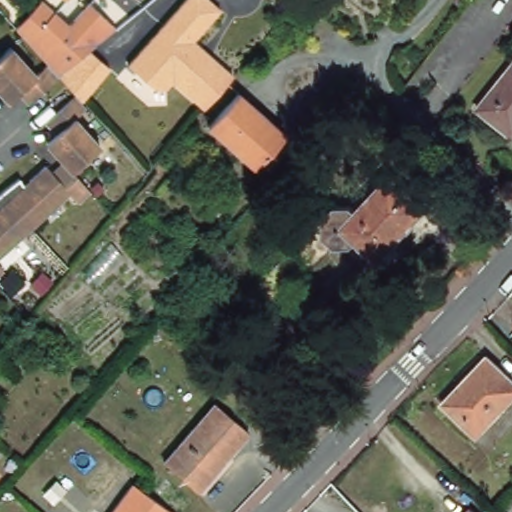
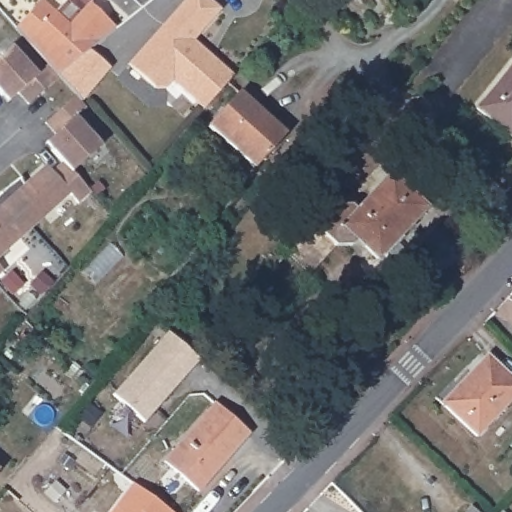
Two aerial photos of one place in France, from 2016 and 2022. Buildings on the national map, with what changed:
unchanged [(84,4),(110,28),(84,50),(52,75),(44,67),(21,42),(11,29),(36,0),(48,12),(64,26),(84,4)]
unchanged [(202,49),(199,52),(205,58),(212,57),(234,76),(205,110),(172,82),(167,89),(155,89),(129,66),(186,0),(209,0),(220,10),(193,41),(202,49)]
unchanged [(8,49),(33,76),(44,67),(52,75),(52,76),(56,80),(26,107),(16,95),(14,97),(5,105),(0,100),(0,56),(8,49)]
unchanged [(72,97),(67,92),(56,80),(52,76),(52,75),(84,50),(103,67),(75,100),(72,97)]
unchanged [(512,63),(512,137),(476,109),(512,63)]
unchanged [(234,94),(280,134),(250,169),(203,128),(234,94)]
unchanged [(15,179),(20,185),(41,166),(47,173),(57,164),(47,152),(42,146),(51,137),(52,136),(42,125),(72,97),(75,100),(84,110),(72,120),(97,147),(68,174),(86,193),(72,206),(65,197),(29,230),(0,256),(0,189),(15,179)]
unchanged [(387,270),(377,260),(356,241),(351,247),(331,247),(307,271),(289,252),(322,217),(333,206),(351,206),(356,210),(388,176),(425,208),(393,241),(405,252),(387,270)]
new [(169,332),(200,359),(145,422),(114,393),(169,332)]
unchanged [(512,400),(477,438),(442,406),(487,357),(512,381),(512,400)]
unchanged [(249,432),(199,491),(164,462),(214,402),(249,432)]
unchanged [(170,512),(111,512),(132,483),(170,512)]
unchanged [(478,512),(468,512),(472,507),(478,512)]

